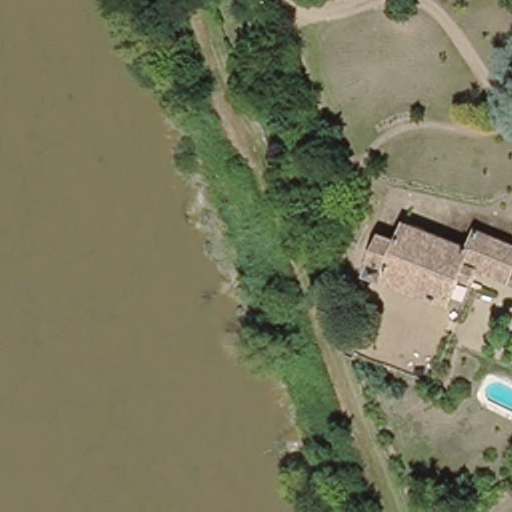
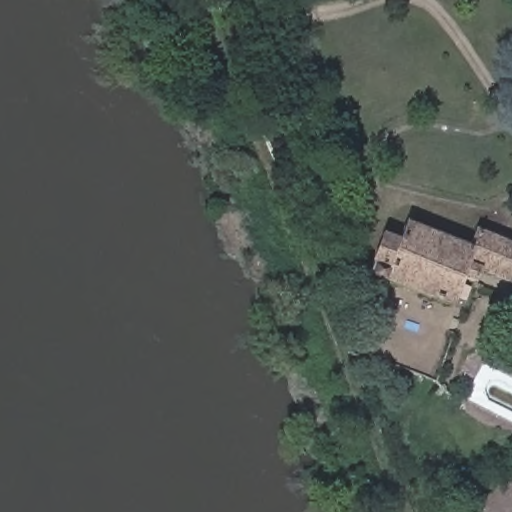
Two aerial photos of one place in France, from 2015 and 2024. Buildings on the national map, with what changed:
unchanged [(397,238),(404,221),(467,242),(473,225),(512,239),(512,279),(472,266),(467,279),(460,277),(451,299),(366,267),(380,231),(397,238)]

